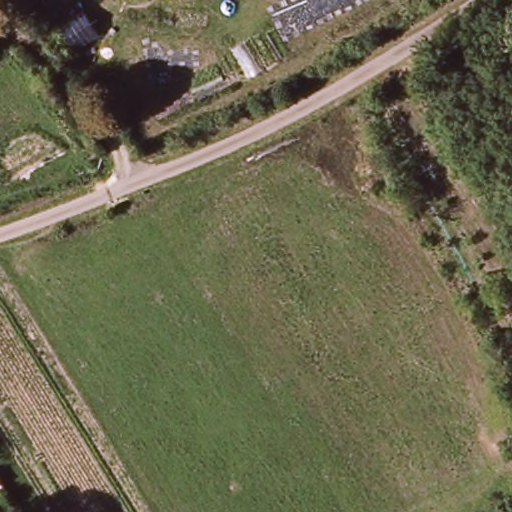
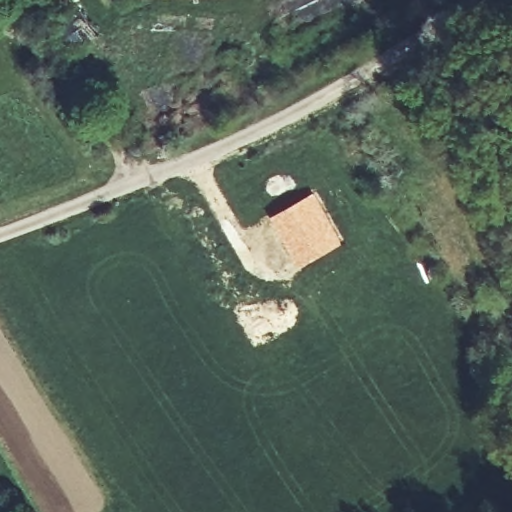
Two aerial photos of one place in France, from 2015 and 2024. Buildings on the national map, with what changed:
unchanged [(56,27),(81,10),(100,36),(75,54),(56,27)]
new [(315,191),(344,241),(302,266),(272,216),(315,191)]

